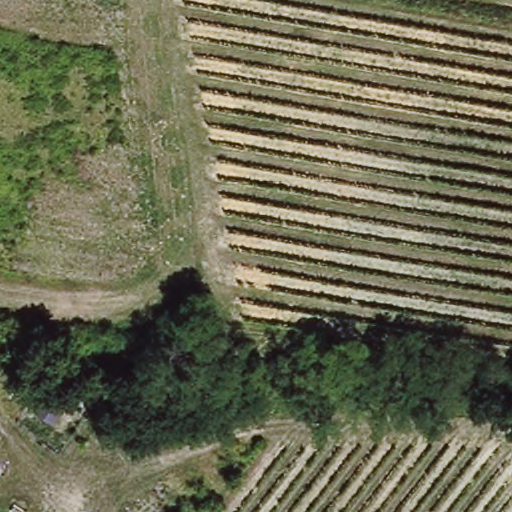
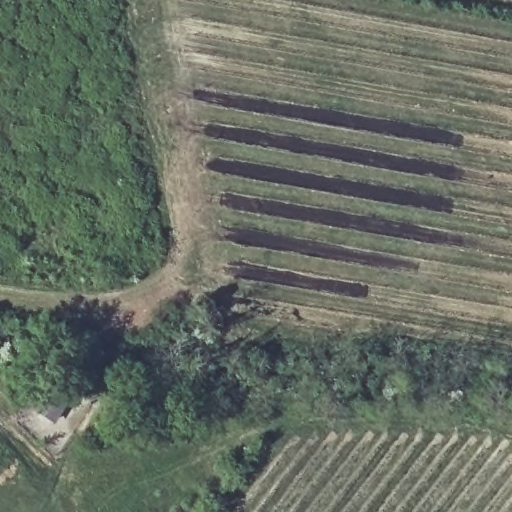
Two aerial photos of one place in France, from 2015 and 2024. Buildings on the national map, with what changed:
unchanged [(60,405),(43,395),(55,374),(73,384),(60,405)]

